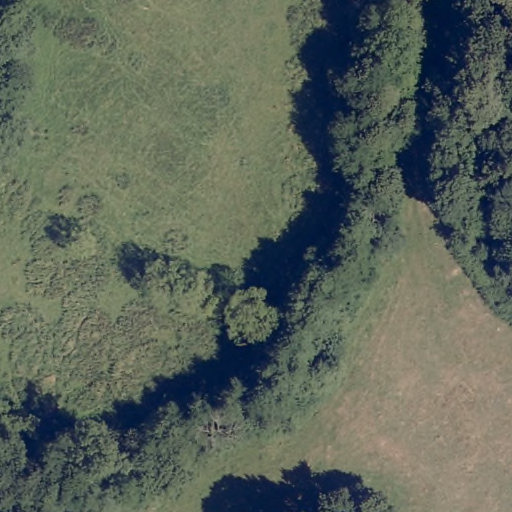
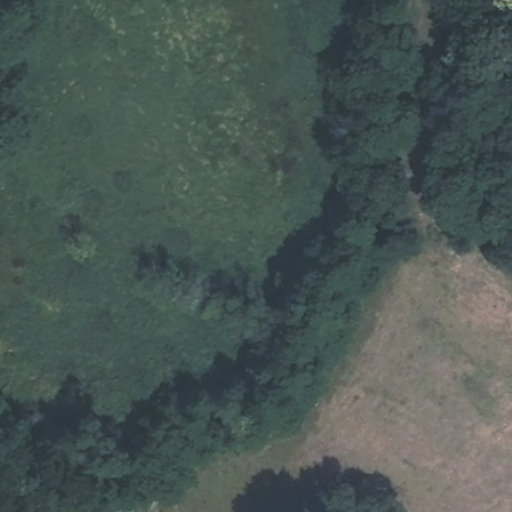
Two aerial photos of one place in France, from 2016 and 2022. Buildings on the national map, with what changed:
[]

